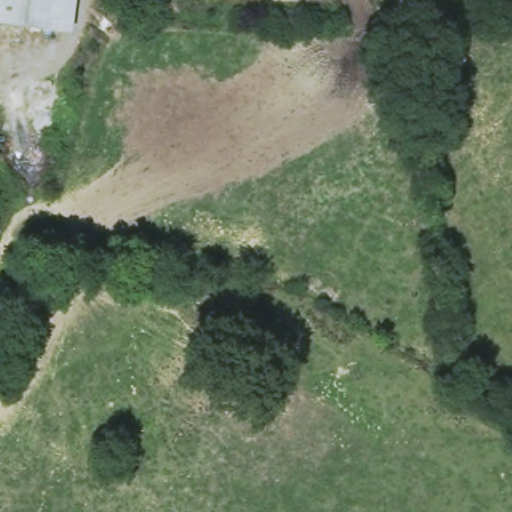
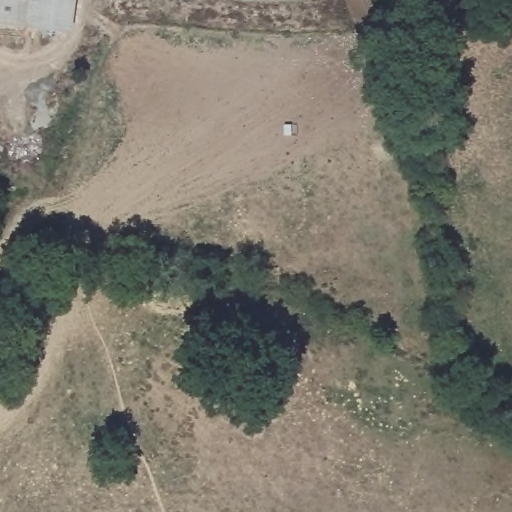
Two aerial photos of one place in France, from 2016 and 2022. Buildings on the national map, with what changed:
unchanged [(76,36),(0,25),(0,0),(80,0),(76,36)]

